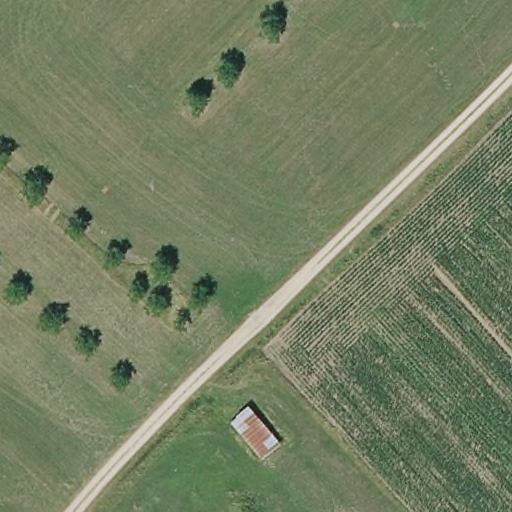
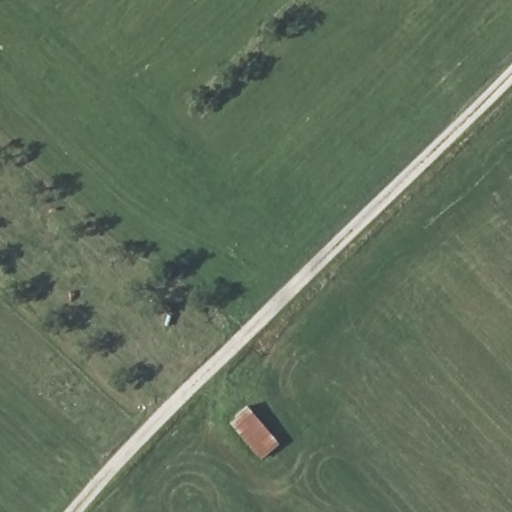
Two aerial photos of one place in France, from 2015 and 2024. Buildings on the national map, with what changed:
unchanged [(228,426),(244,409),(274,444),(258,461),(228,426)]

